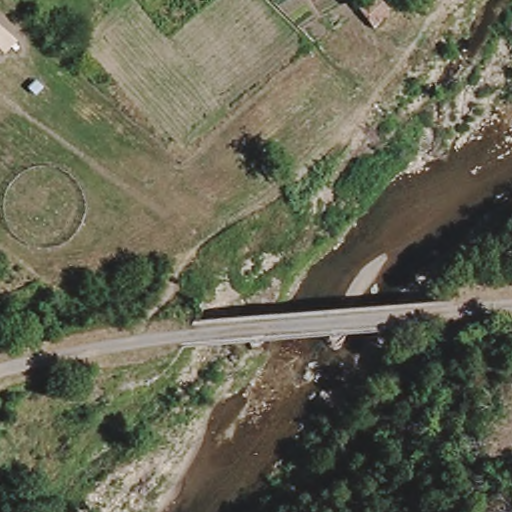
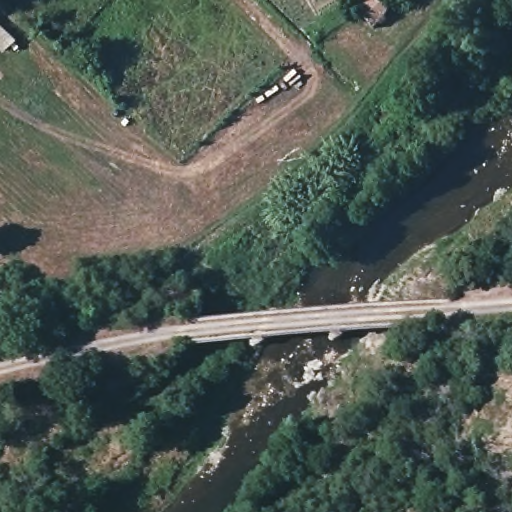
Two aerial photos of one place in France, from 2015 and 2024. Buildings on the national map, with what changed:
unchanged [(379,0),(392,17),(379,31),(364,10),(375,0),(379,0)]

